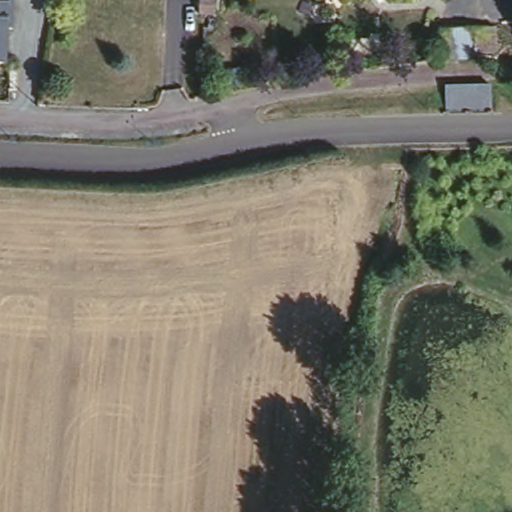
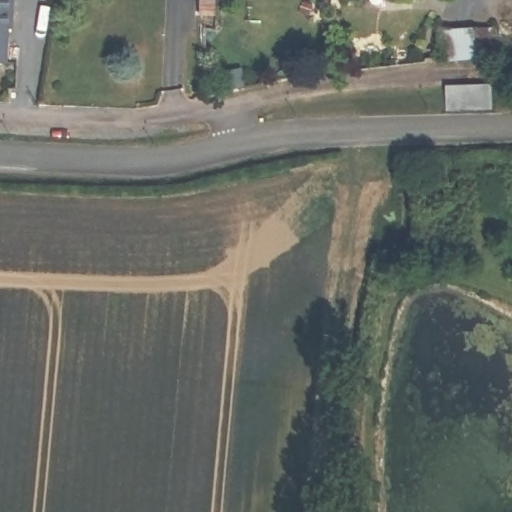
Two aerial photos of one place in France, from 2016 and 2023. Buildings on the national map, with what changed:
unchanged [(7,64),(0,64),(0,0),(12,0),(7,64)]
unchanged [(470,27),(490,31),(491,59),(468,56),(435,60),(435,30),(470,27)]
unchanged [(441,83),(487,81),(488,94),(488,105),(444,107),(443,95),(441,83)]

